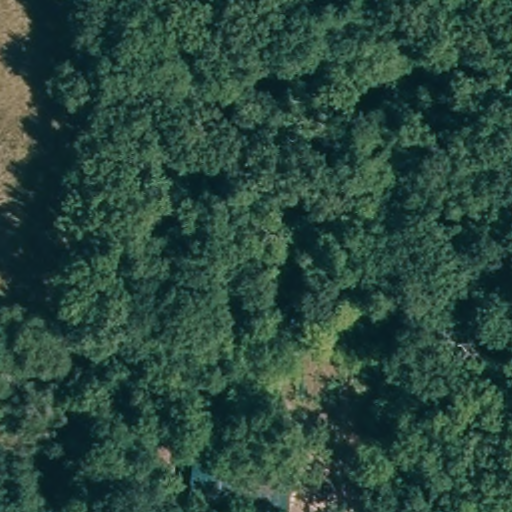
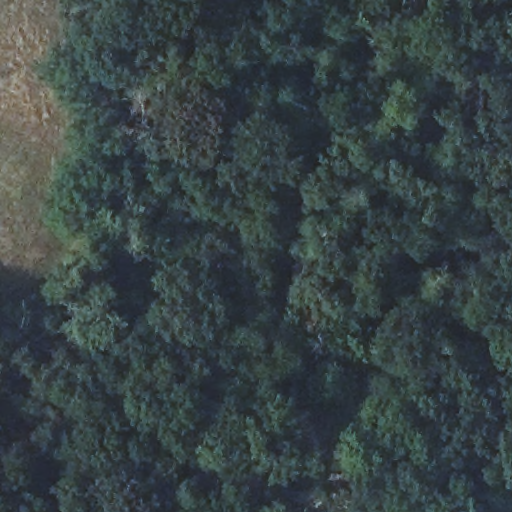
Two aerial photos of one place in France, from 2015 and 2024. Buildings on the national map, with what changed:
unchanged [(48,512),(0,512),(0,476),(50,478),(48,512)]

